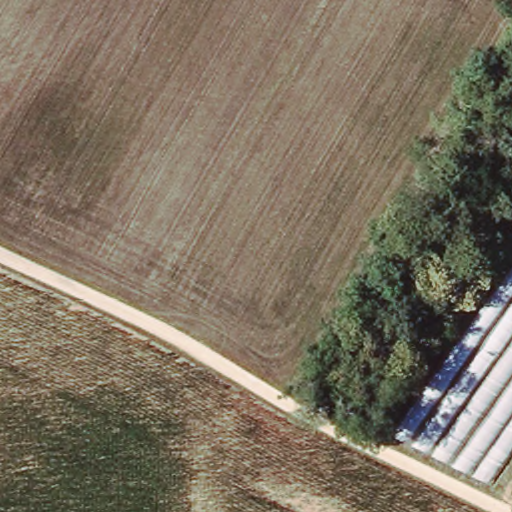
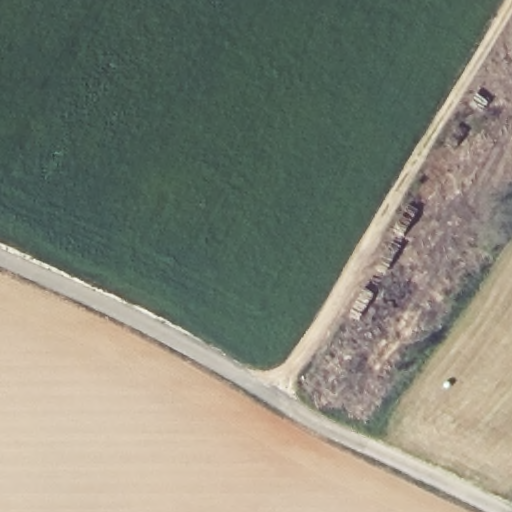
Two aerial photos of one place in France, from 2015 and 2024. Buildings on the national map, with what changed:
demolished [(512,272),(512,448),(487,483),(391,436),(512,272)]

